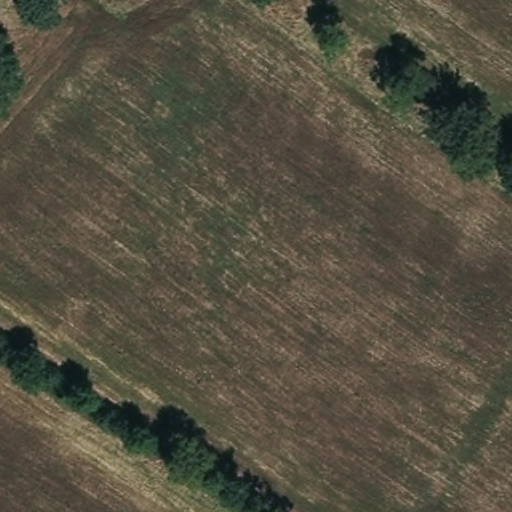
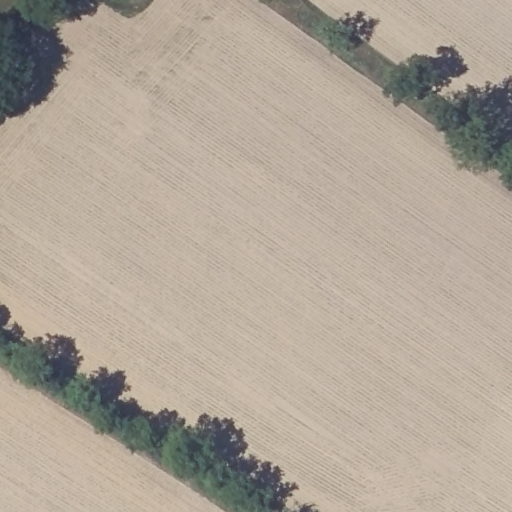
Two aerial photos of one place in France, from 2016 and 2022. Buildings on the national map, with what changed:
[]

